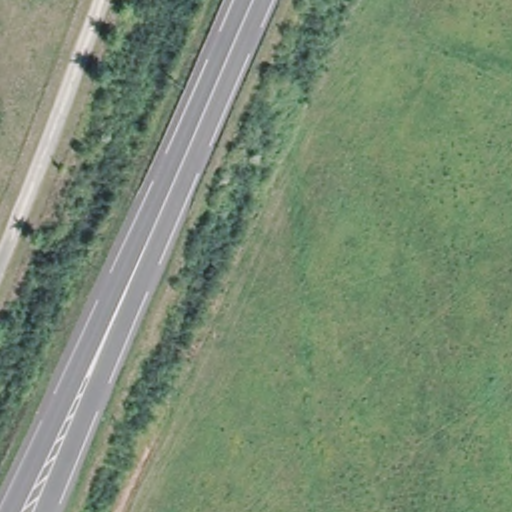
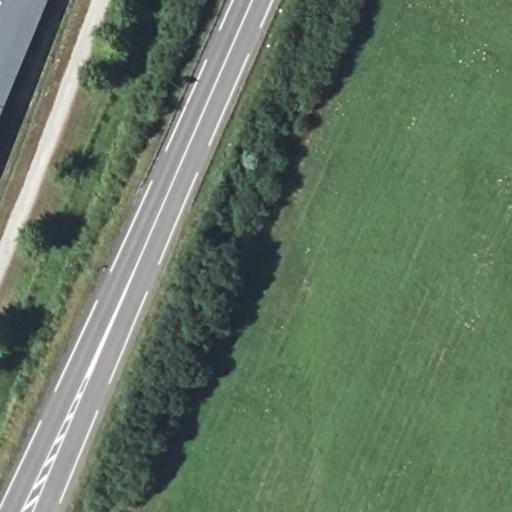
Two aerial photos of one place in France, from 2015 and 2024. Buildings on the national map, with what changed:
new [(45,0),(0,107),(0,0),(45,0)]

